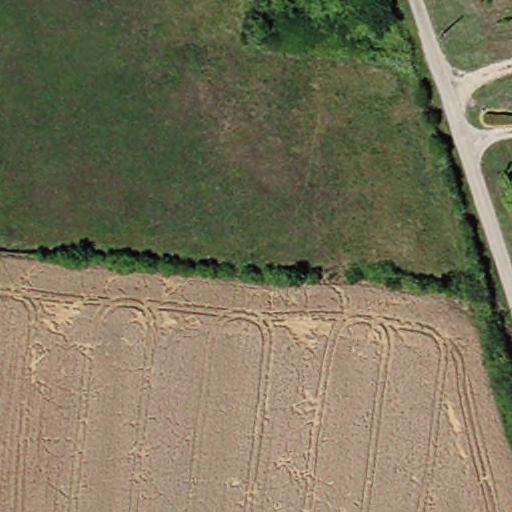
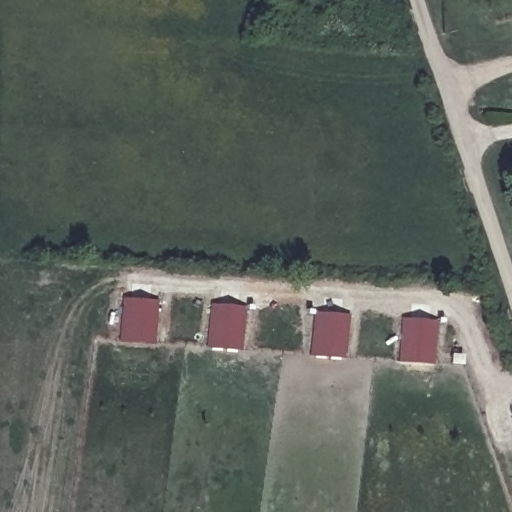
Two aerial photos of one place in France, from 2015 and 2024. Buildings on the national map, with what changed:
new [(155,343),(120,340),(122,297),(157,299),(155,343)]
new [(211,302),(245,305),(241,350),(208,347),(211,302)]
new [(313,311),(349,313),(346,358),(310,355),(313,311)]
new [(434,363),(398,361),(401,317),(437,319),(434,363)]

